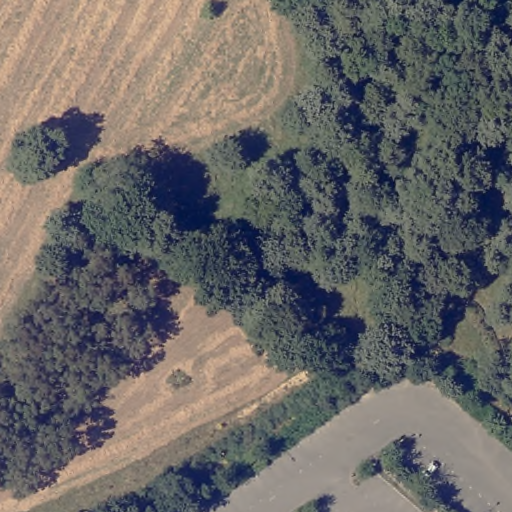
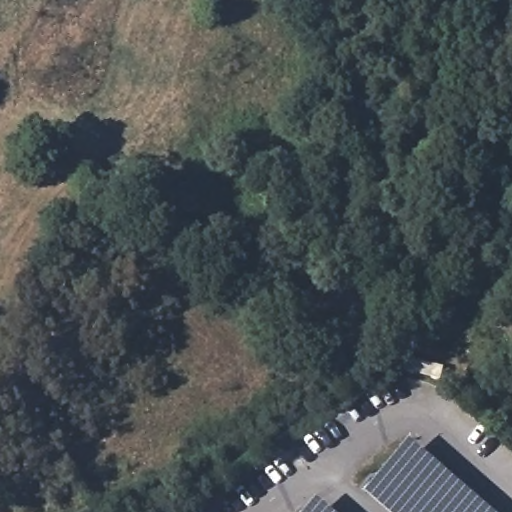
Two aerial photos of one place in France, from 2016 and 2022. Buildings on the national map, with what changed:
new [(492,512),(389,512),(364,490),(409,440),(492,512)]
new [(330,512),(304,512),(316,499),(330,512)]

